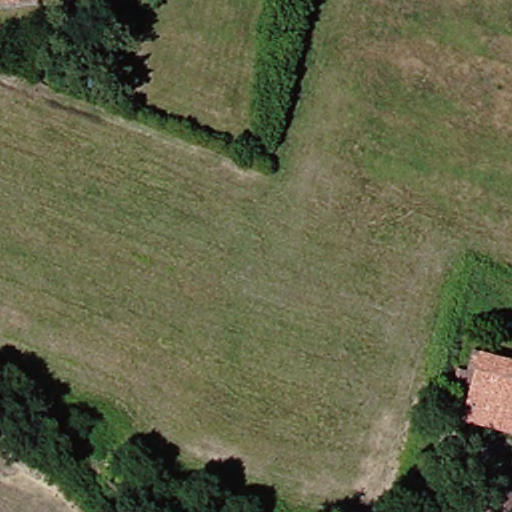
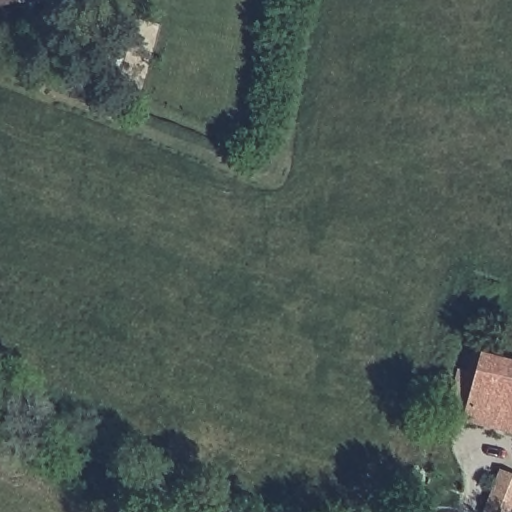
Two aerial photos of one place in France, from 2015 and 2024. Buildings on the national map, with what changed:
unchanged [(27,8),(0,10),(0,0),(26,0),(27,8)]
unchanged [(512,428),(469,424),(458,421),(470,377),(474,365),(512,372),(512,428)]
unchanged [(512,476),(512,512),(488,512),(491,475),(512,476)]

